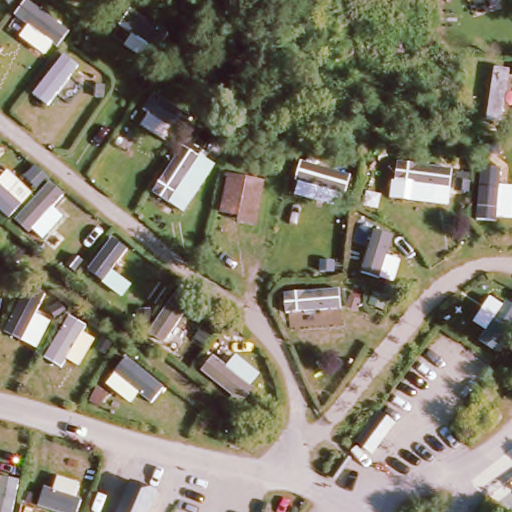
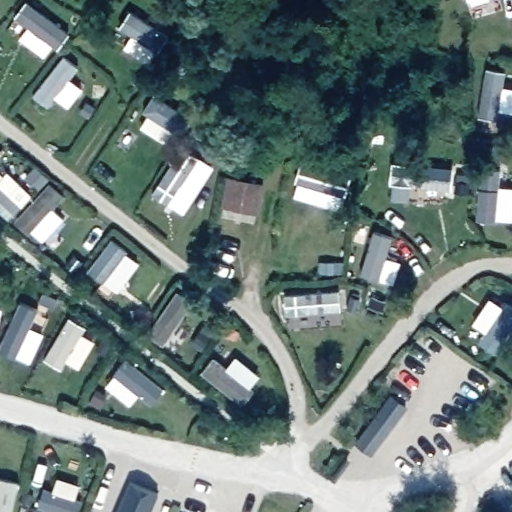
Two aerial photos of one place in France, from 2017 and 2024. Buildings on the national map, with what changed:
unchanged [(227,177),(259,185),(251,224),(219,218),(227,177)]
unchanged [(151,512),(116,512),(130,480),(160,492),(151,512)]

